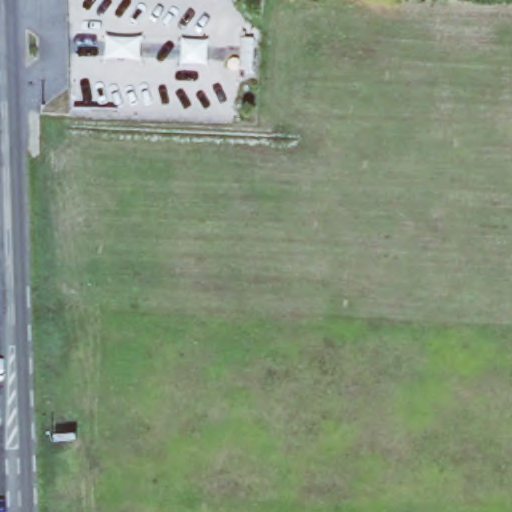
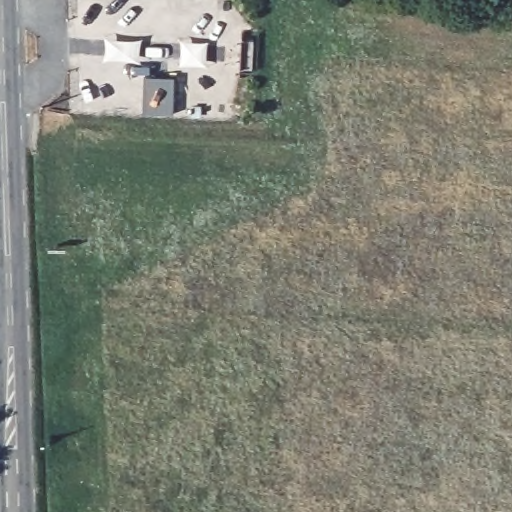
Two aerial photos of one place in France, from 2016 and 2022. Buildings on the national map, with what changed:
unchanged [(258,70),(246,70),(245,40),(257,40),(258,70)]

